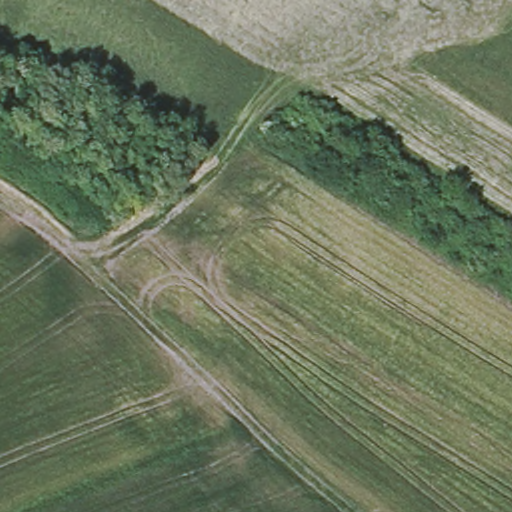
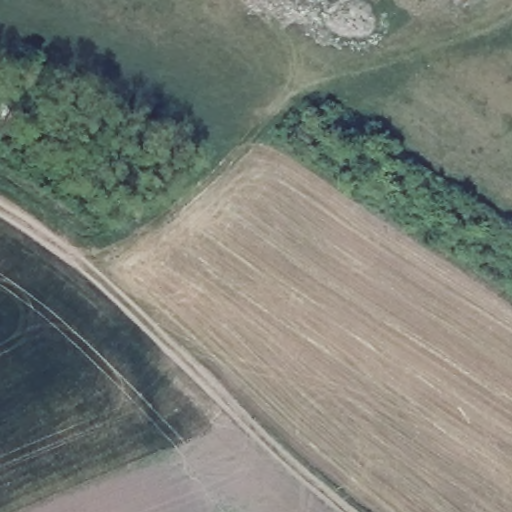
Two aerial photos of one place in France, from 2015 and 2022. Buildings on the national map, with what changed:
[]

